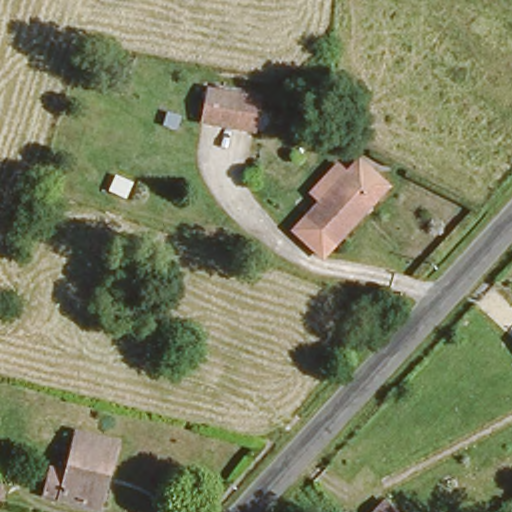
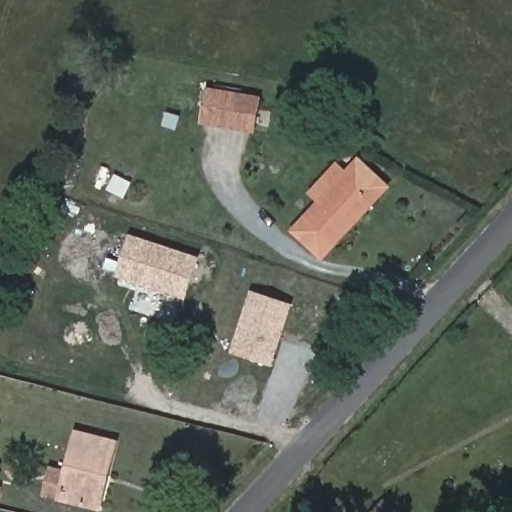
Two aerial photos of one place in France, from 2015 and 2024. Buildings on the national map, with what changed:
unchanged [(251,128),(203,118),(210,89),(258,98),(251,128)]
unchanged [(345,170),(316,201),(304,192),(334,161),(345,170)]
unchanged [(300,218),(316,201),(338,179),(352,165),(377,189),(363,203),(324,242),(300,218)]
new [(200,258),(186,299),(115,276),(128,235),(200,258)]
new [(273,368),(230,353),(249,295),(257,298),(259,293),(294,305),(273,368)]
unchanged [(115,441),(107,474),(102,473),(94,503),(61,495),(76,431),(115,441)]

